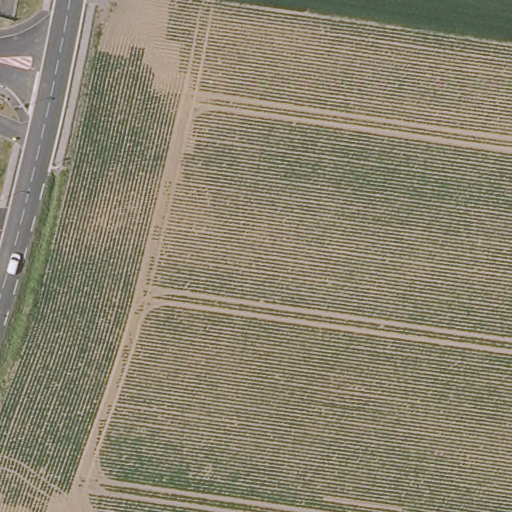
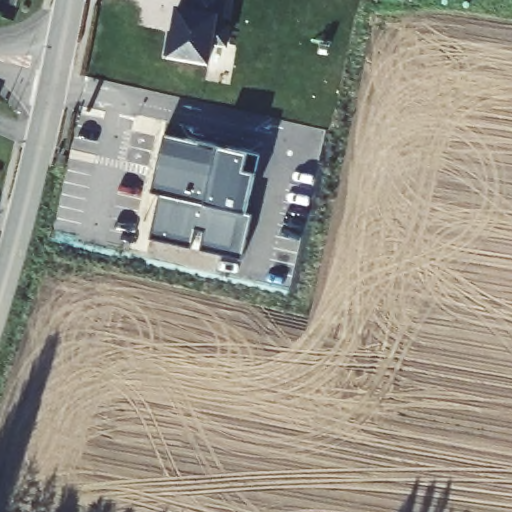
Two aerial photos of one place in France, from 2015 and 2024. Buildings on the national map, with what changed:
new [(179,7),(185,7),(186,0),(230,0),(227,17),(215,13),(211,25),(227,27),(225,46),(211,42),(207,62),(171,55),(179,7)]
new [(164,133),(260,155),(247,212),(252,214),(244,262),(150,239),(159,196),(151,194),(164,133)]

